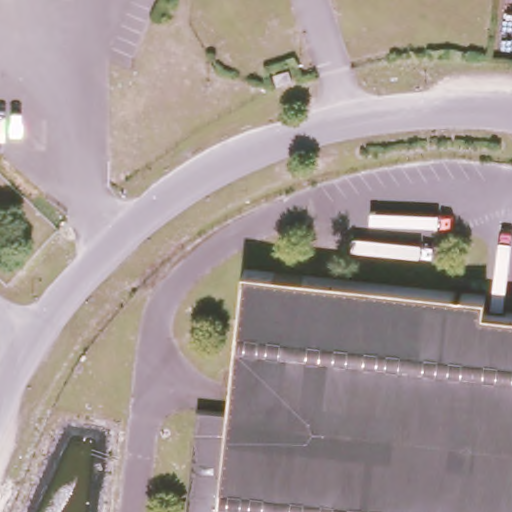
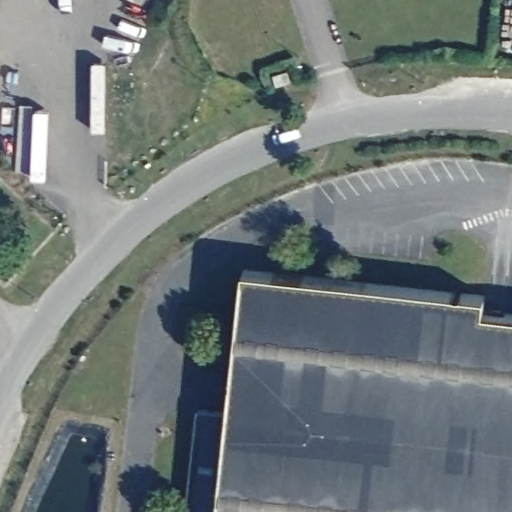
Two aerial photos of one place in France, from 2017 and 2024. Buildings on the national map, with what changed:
unchanged [(225,414),(253,415),(268,274),(497,299),(496,314),(512,316),(512,512),(214,512),(225,414)]

